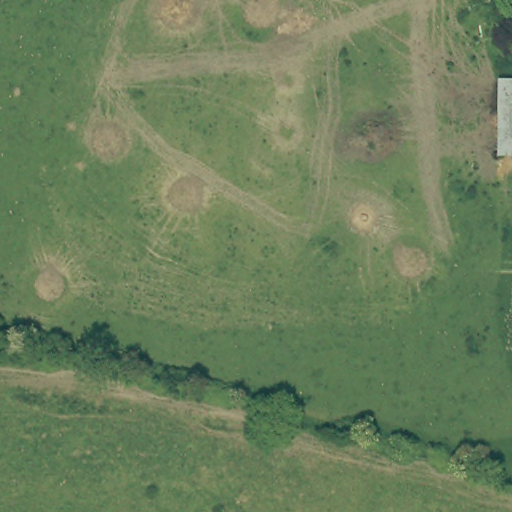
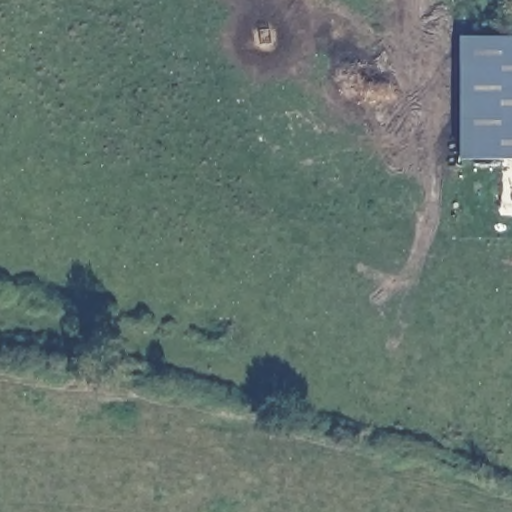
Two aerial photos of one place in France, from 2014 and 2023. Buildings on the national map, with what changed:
new [(512,37),(512,80),(504,79),(502,159),(459,159),(459,36),(512,37)]
unchanged [(512,80),(512,162),(502,161),(504,79),(512,80)]

